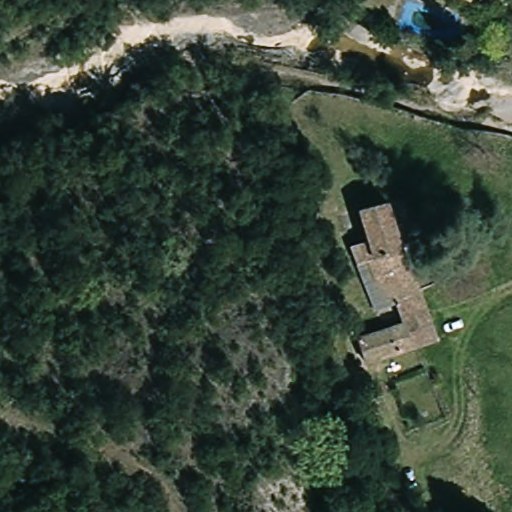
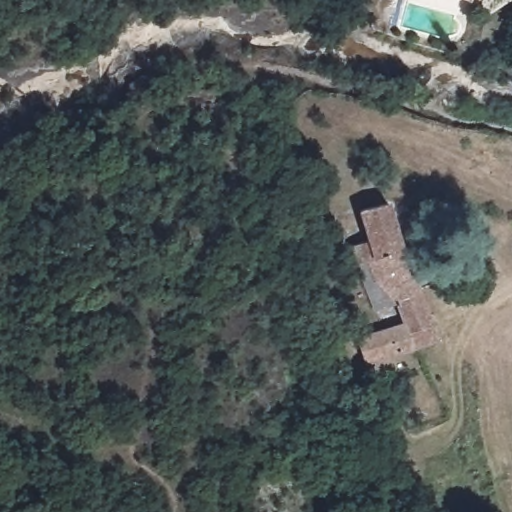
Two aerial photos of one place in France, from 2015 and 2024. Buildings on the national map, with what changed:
unchanged [(474,0),(476,0),(476,1),(474,0)]
unchanged [(410,270),(416,287),(435,336),(413,346),(370,365),(361,342),(401,324),(393,303),(375,311),(358,265),(366,262),(360,242),(368,240),(361,207),(391,202),(410,270)]

